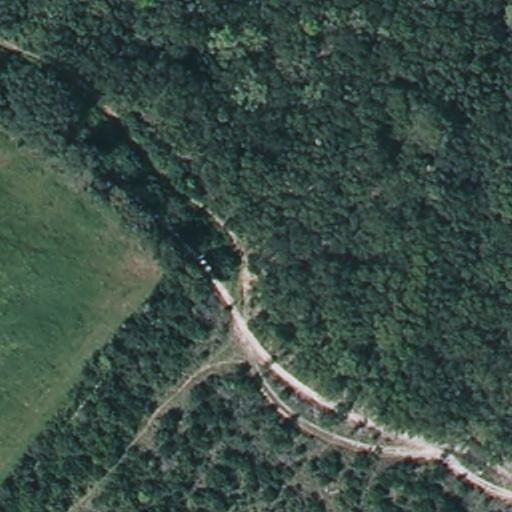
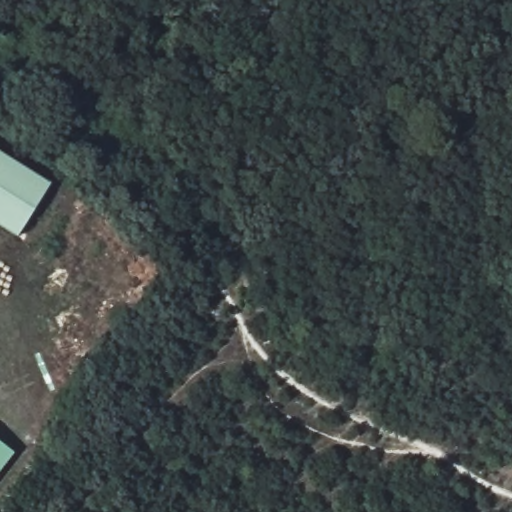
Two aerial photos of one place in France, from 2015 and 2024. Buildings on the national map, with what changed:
new [(17,237),(0,226),(0,152),(52,184),(17,237)]

